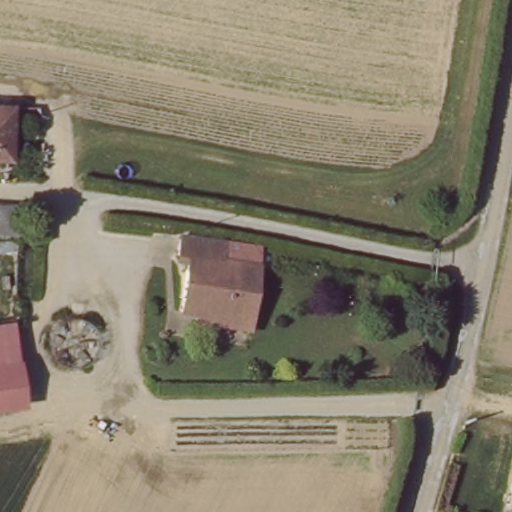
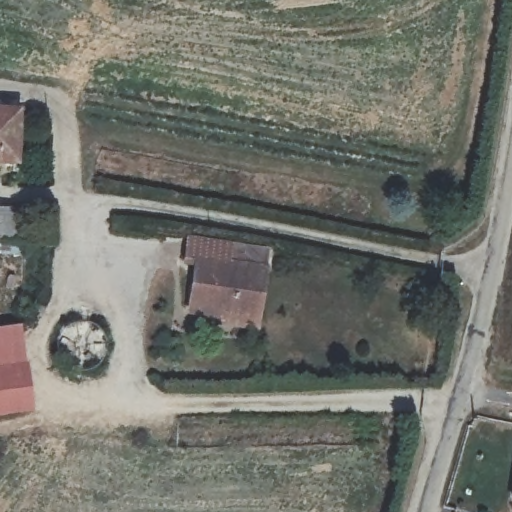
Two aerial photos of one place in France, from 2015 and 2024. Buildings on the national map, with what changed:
unchanged [(18,103),(12,157),(0,157),(0,103),(18,103)]
unchanged [(21,207),(22,239),(0,239),(0,208),(21,207)]
unchanged [(214,322),(216,312),(196,309),(201,260),(191,259),(193,241),(232,245),(230,262),(267,267),(260,317),(259,327),(214,322)]
unchanged [(19,322),(25,362),(0,366),(0,326),(19,322)]
unchanged [(33,406),(0,411),(0,366),(25,362),(33,406)]

